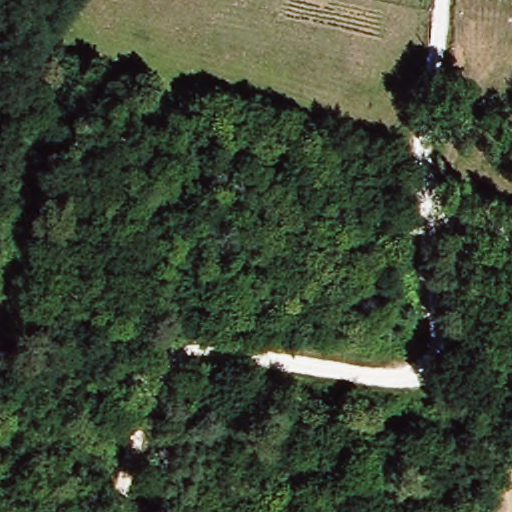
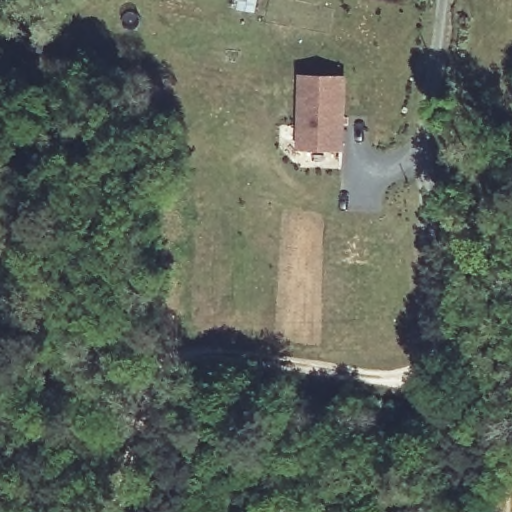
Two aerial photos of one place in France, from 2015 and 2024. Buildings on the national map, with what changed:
new [(347,149),(298,149),(299,74),(348,74),(347,149)]

